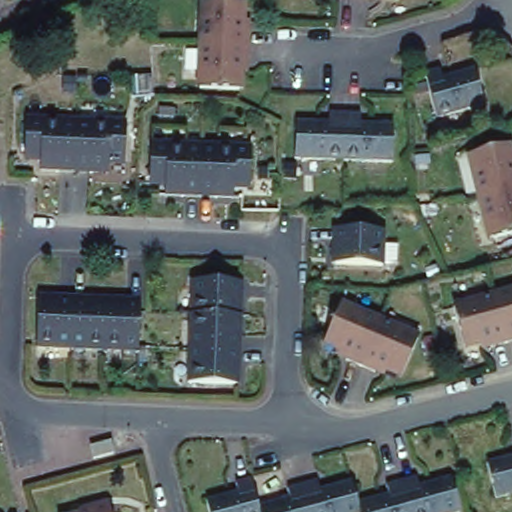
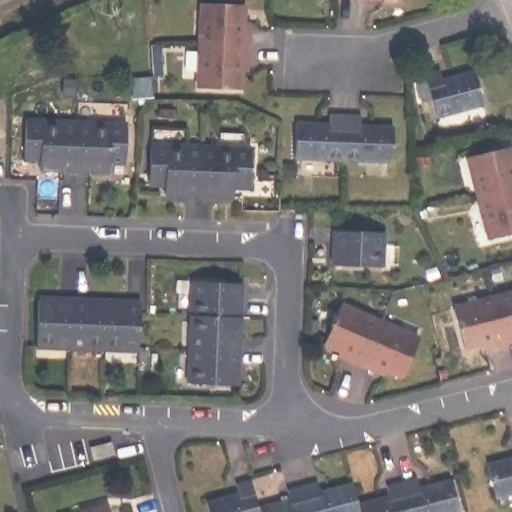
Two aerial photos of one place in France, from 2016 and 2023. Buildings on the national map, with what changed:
unchanged [(234,2),(234,28),(242,29),(242,58),(232,58),(231,83),(195,82),(197,1),(234,2)]
unchanged [(441,78),(443,85),(472,77),(481,109),(437,121),(426,83),(441,78)]
unchanged [(324,131),(326,122),(357,123),(357,131),(389,133),(388,165),(295,164),(294,131),(324,131)]
unchanged [(102,164),(101,174),(36,171),(36,163),(20,162),(19,150),(19,123),(121,124),(120,152),(119,165),(102,164)]
unchanged [(231,188),(231,198),(170,196),(171,186),(154,185),(154,173),(154,145),(251,148),(250,176),(249,188),(231,188)]
unchanged [(511,178),(512,177),(512,234),(484,242),(465,159),(504,149),(511,178)]
unchanged [(382,233),(381,270),(333,269),(334,260),(330,258),(332,232),(382,233)]
unchanged [(182,382),(185,279),(237,281),(234,376),(232,376),(232,382),(182,382)]
unchanged [(145,303),(144,353),(41,350),(42,304),(47,304),(47,301),(145,303)]
unchanged [(512,347),(492,353),(490,347),(465,353),(455,317),(512,302),(512,347)]
unchanged [(414,342),(398,378),(372,366),(368,373),(346,361),(350,355),(324,343),(339,307),(414,342)]
unchanged [(107,447),(110,459),(90,465),(87,452),(107,447)]
unchanged [(512,493),(494,498),(485,464),(512,457),(512,493)]
unchanged [(237,486),(253,482),(260,508),(292,500),(291,492),(318,485),(320,492),(353,484),(358,503),(389,497),(387,488),(417,480),(420,489),(452,481),(461,512),(210,512),(208,504),(239,496),(237,486)]
unchanged [(90,508),(106,503),(108,512),(88,512),(91,511),(90,508)]

